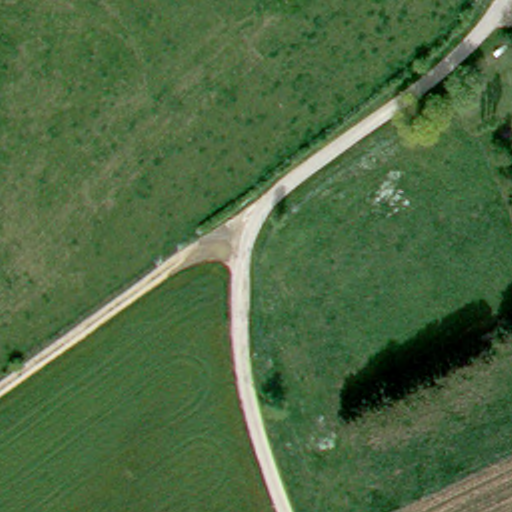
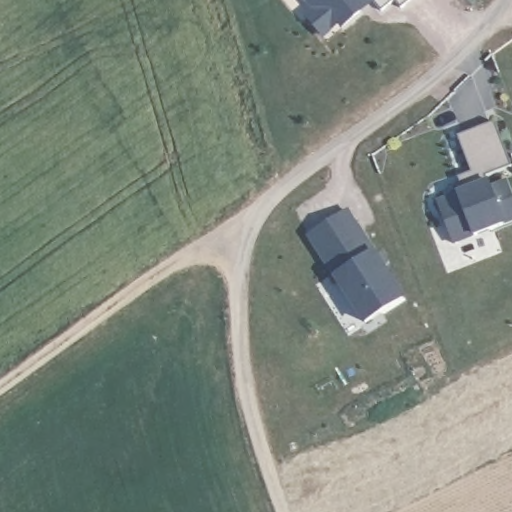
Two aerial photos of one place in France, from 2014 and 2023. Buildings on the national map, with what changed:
new [(359,7),(363,12),(345,26),(333,12),(319,11),(309,0),(367,0),(359,7)]
new [(404,8),(397,1),(385,12),(375,0),(413,0),(404,8)]
new [(494,122),(511,166),(485,177),(487,179),(490,187),(506,180),(512,196),(512,222),(505,224),(475,237),(454,245),(438,201),(457,192),(465,189),(459,178),(472,174),(458,136),(494,122)]
new [(403,298),(365,322),(311,236),(347,212),(403,298)]

